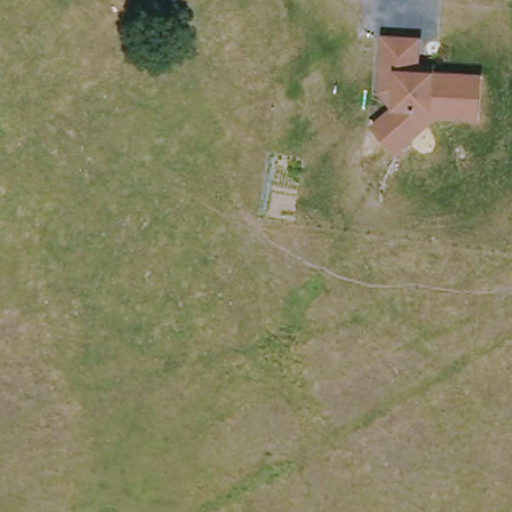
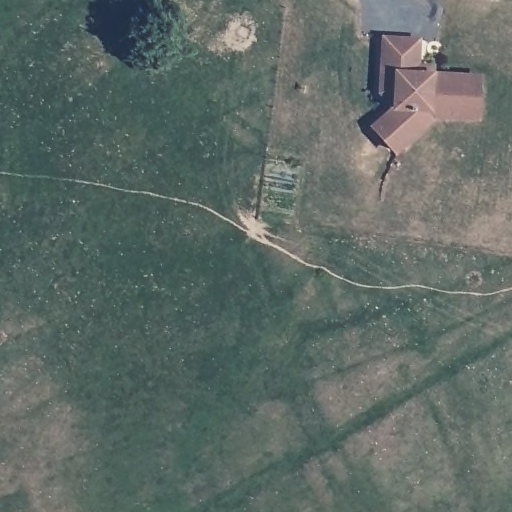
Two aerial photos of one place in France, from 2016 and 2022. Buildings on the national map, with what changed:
unchanged [(420,39),(418,71),(432,73),(432,82),(479,87),(476,127),(425,121),(403,148),(377,125),(395,105),(381,91),(383,71),(387,36),(420,39)]

